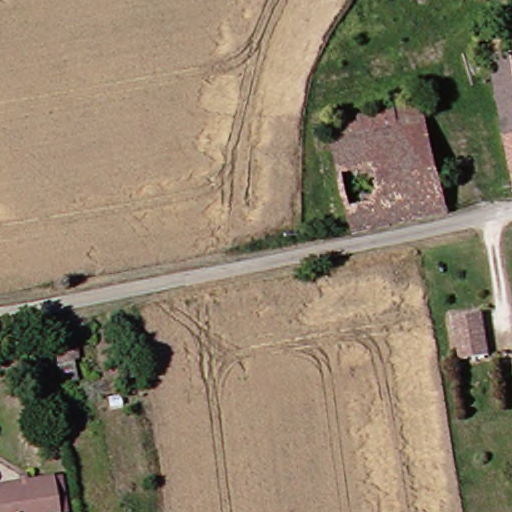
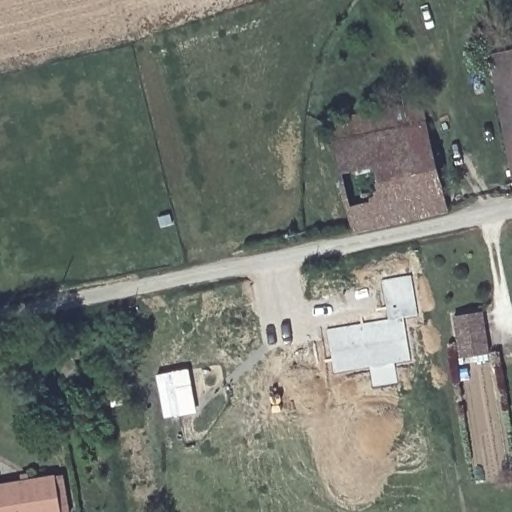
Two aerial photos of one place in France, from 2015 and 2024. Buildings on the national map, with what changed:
unchanged [(493,89),(498,88),(493,67),(512,63),(512,166),(493,89)]
unchanged [(422,105),(446,204),(351,225),(329,136),(422,105)]
new [(327,330),(389,319),(382,281),(411,275),(418,315),(403,318),(410,360),(394,364),(398,383),(373,387),(370,367),(334,373),(327,330)]
unchanged [(495,354),(467,358),(460,316),(488,312),(495,354)]
unchanged [(82,365),(65,368),(60,343),(78,340),(82,365)]
unchanged [(26,474),(33,473),(35,479),(60,474),(68,473),(74,512),(0,512),(0,485),(27,480),(26,474)]

